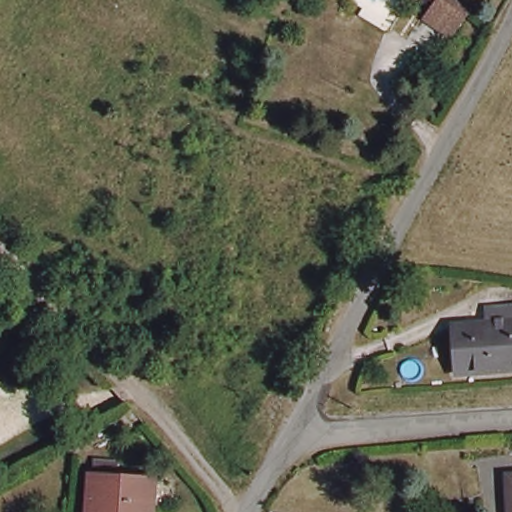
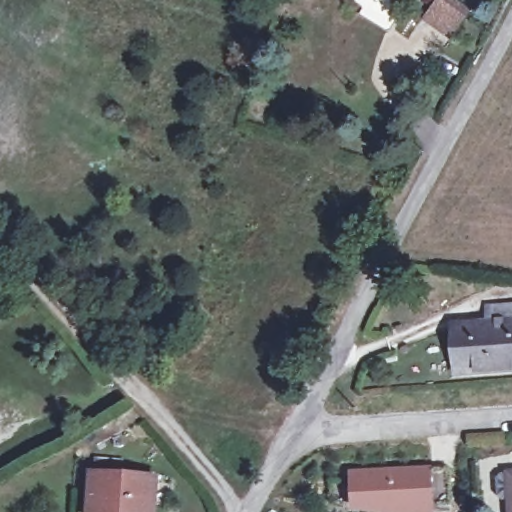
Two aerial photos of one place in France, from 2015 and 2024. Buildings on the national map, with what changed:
unchanged [(425,19),(439,0),(442,0),(465,17),(450,37),(425,19)]
unchanged [(512,302),(512,362),(465,366),(461,322),(496,319),(495,303),(512,302)]
unchanged [(90,512),(92,476),(96,476),(97,461),(117,462),(116,478),(154,481),(152,512),(90,512)]
new [(450,469),(451,489),(452,507),(432,508),(432,512),(387,512),(353,506),(352,473),(430,468),(430,471),(450,469)]
unchanged [(511,512),(509,470),(512,470),(512,512),(511,512)]

